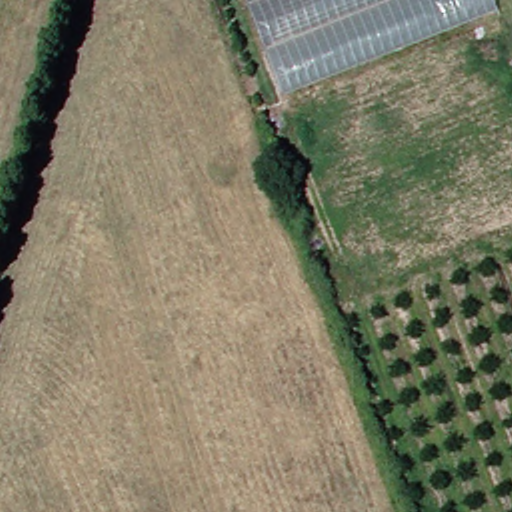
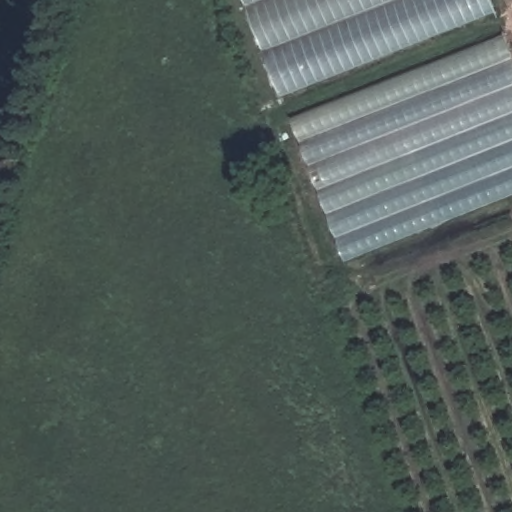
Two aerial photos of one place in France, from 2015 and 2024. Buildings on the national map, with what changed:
unchanged [(281,96),(245,0),(493,0),(498,15),(281,96)]
new [(512,197),(345,264),(292,121),(507,38),(512,51),(512,197)]

